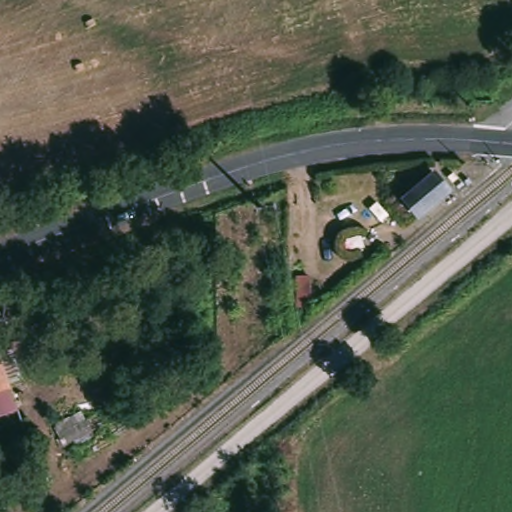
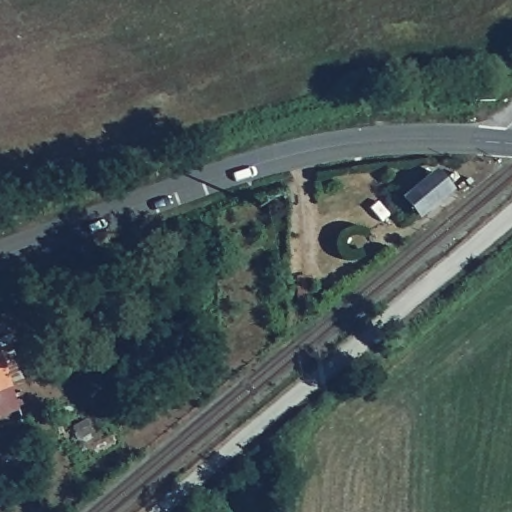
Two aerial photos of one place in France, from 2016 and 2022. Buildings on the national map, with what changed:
unchanged [(406,196),(434,174),(446,192),(420,213),(406,196)]
unchanged [(7,393),(0,395),(0,373),(7,393)]

